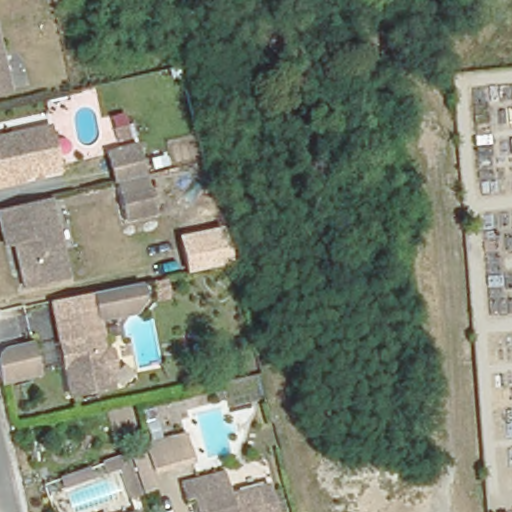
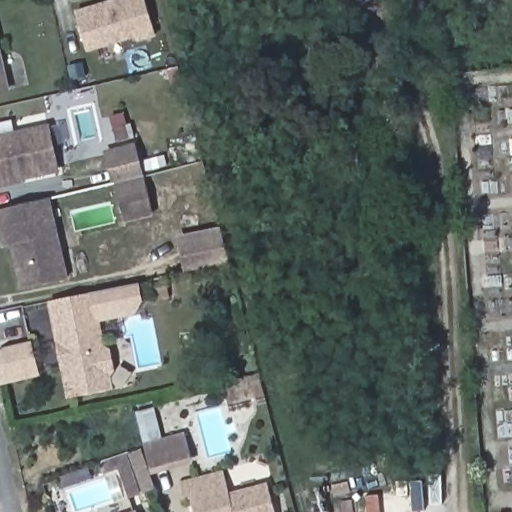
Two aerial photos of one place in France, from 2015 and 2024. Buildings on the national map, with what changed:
new [(119,0),(146,0),(157,34),(141,38),(140,34),(89,50),(77,14),(119,0)]
unchanged [(9,90),(0,93),(0,55),(9,90)]
unchanged [(59,169),(0,180),(0,136),(51,126),(59,169)]
unchanged [(110,160),(139,153),(146,182),(117,189),(110,160)]
unchanged [(11,204),(47,195),(66,276),(24,286),(14,242),(5,244),(2,231),(0,223),(0,207),(11,204)]
unchanged [(149,199),(154,219),(124,225),(120,206),(149,199)]
unchanged [(183,274),(176,236),(224,226),(232,263),(183,274)]
unchanged [(167,275),(171,292),(157,294),(154,278),(167,275)]
unchanged [(92,295),(140,286),(143,303),(132,314),(97,320),(92,295)]
unchanged [(97,320),(100,333),(106,336),(109,353),(105,359),(112,391),(70,400),(54,321),(51,303),(59,301),(62,301),(92,295),(97,320)]
unchanged [(30,340),(41,378),(0,388),(0,349),(30,340)]
unchanged [(194,463),(152,475),(144,444),(184,433),(194,463)]
unchanged [(127,449),(142,489),(132,493),(121,462),(107,467),(104,458),(127,449)]
unchanged [(186,502),(182,487),(226,477),(231,497),(270,488),(276,512),(196,512),(193,501),(186,502)]

